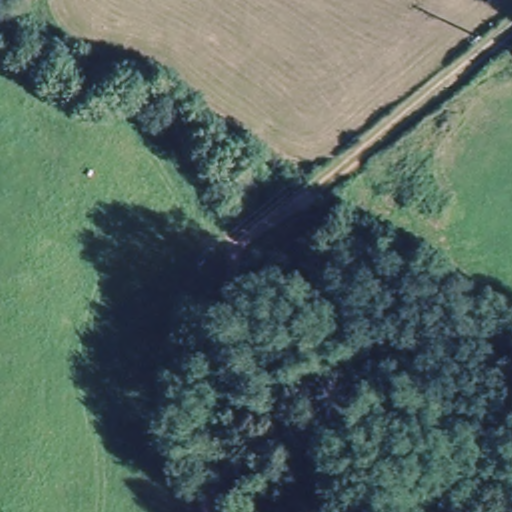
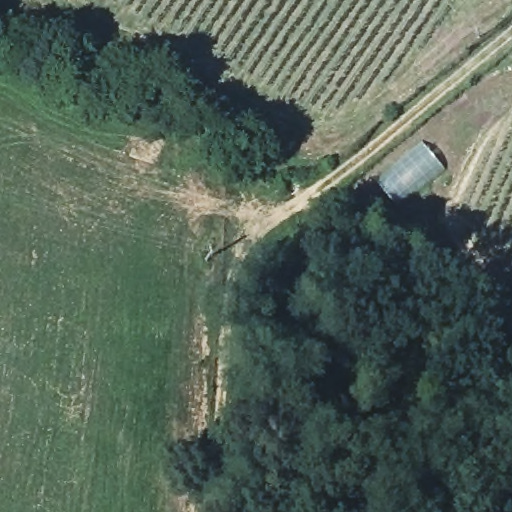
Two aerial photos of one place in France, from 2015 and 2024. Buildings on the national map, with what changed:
new [(422,140),(446,169),(396,205),(376,180),(422,140)]

